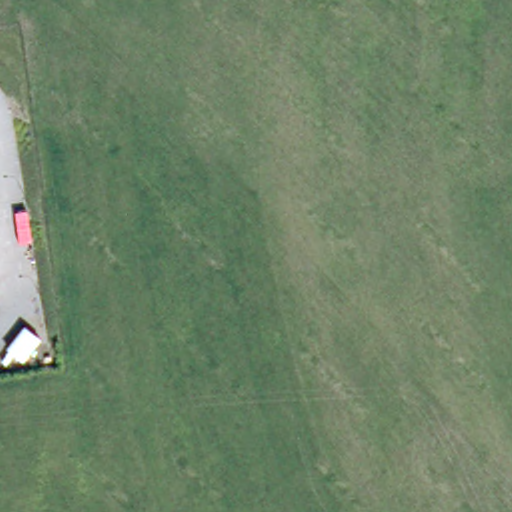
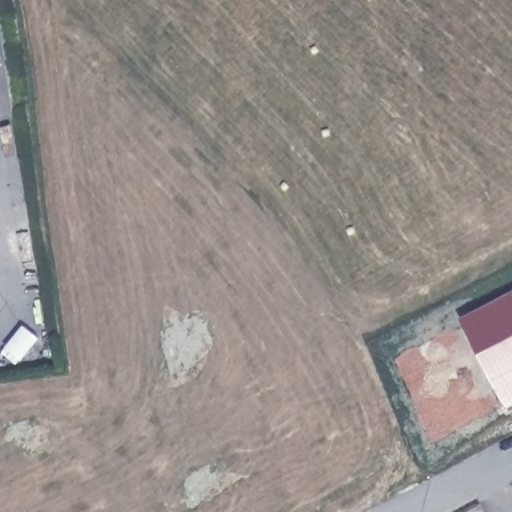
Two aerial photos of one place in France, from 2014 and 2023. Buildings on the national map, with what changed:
new [(461,318),(512,290),(512,404),(508,407),(461,318)]
unchanged [(6,353),(23,332),(37,343),(21,365),(6,353)]

